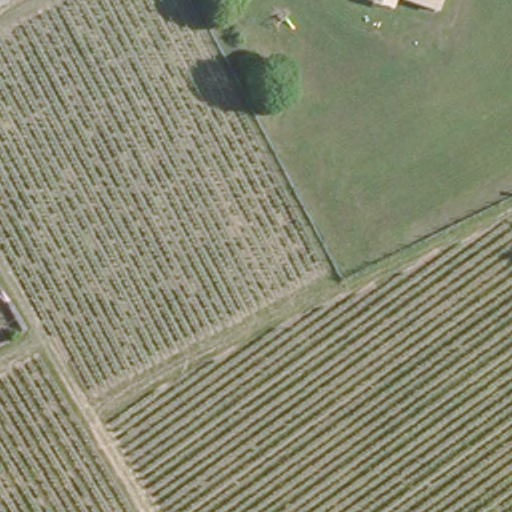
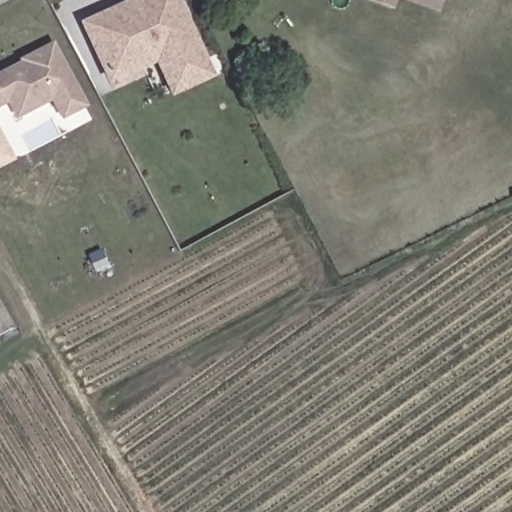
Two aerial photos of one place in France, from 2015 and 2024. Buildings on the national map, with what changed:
new [(154,64),(107,85),(77,21),(125,0),(179,0),(215,76),(170,96),(154,64)]
unchanged [(365,0),(396,0),(393,9),(365,0)]
unchanged [(400,0),(444,0),(440,13),(400,0)]
new [(60,120),(50,101),(15,120),(5,103),(0,106),(0,71),(17,62),(16,60),(53,41),(86,106),(60,120)]

